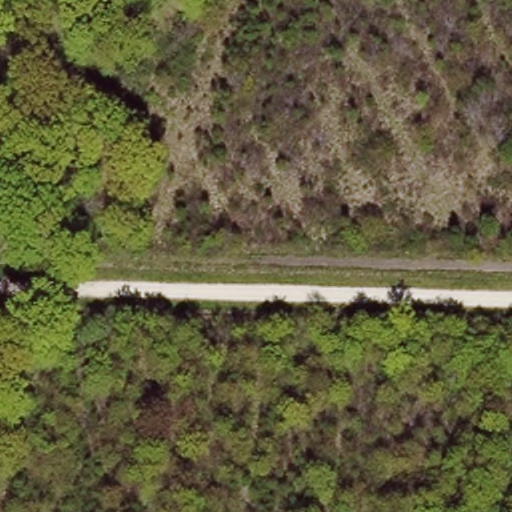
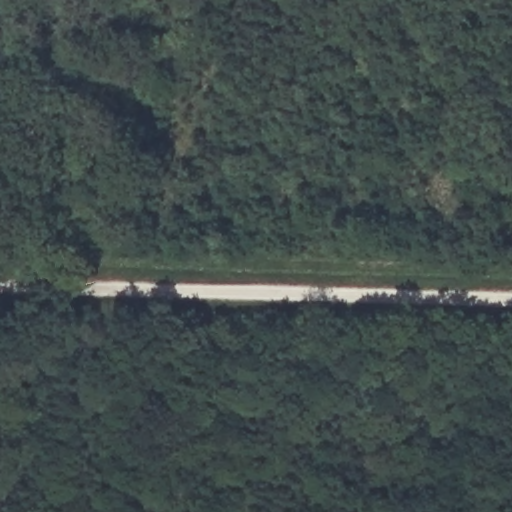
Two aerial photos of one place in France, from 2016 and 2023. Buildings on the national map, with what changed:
[]

